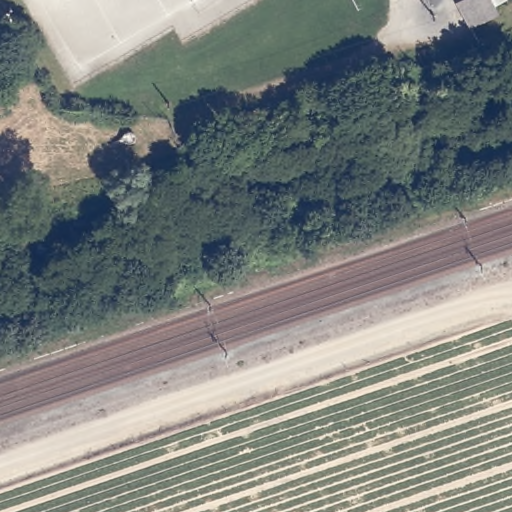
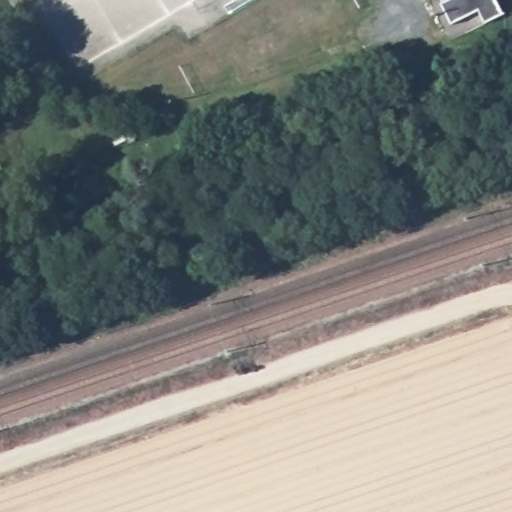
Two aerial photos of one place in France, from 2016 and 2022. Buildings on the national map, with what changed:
unchanged [(503,12),(475,25),(462,0),(497,0),(503,12)]

